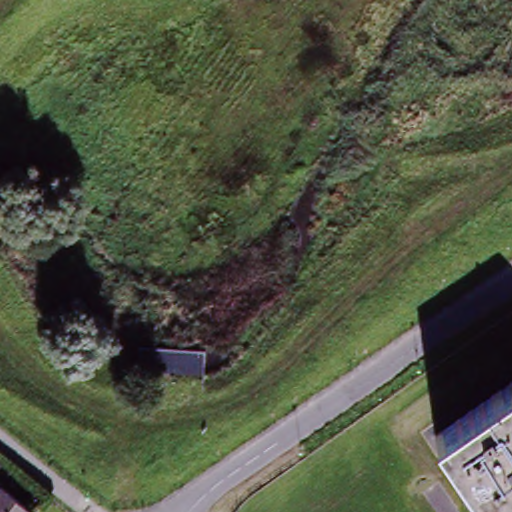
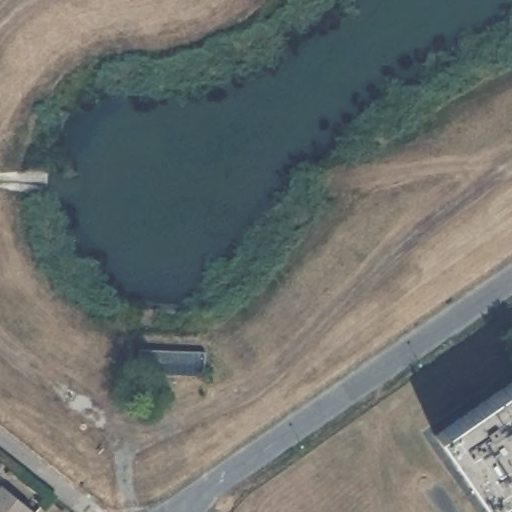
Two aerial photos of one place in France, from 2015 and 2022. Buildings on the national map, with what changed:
unchanged [(206,353),(204,378),(138,377),(139,351),(206,353)]
unchanged [(512,382),(512,486),(484,505),(436,434),(512,382)]
unchanged [(37,511),(36,512),(0,512),(0,484),(2,482),(37,511)]

